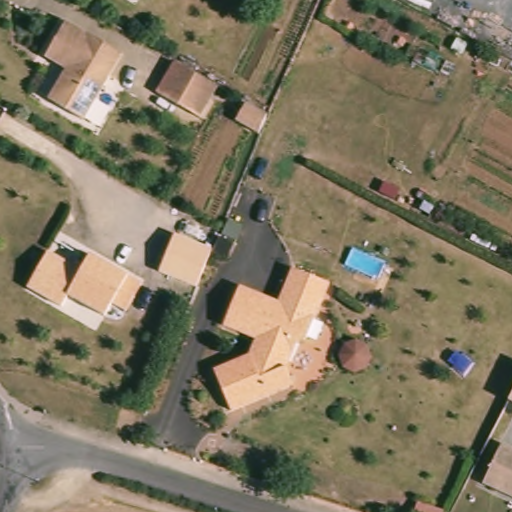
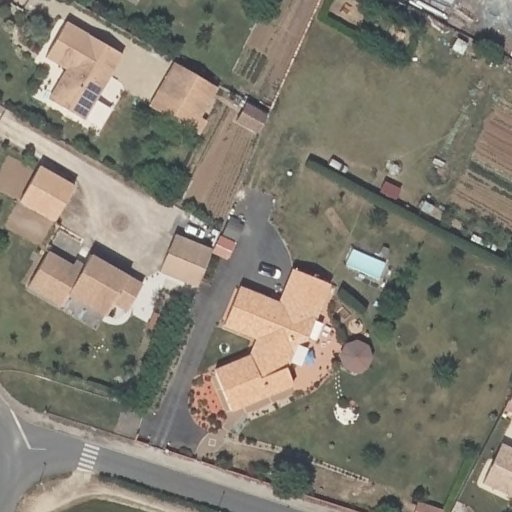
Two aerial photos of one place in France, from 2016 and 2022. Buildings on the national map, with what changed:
unchanged [(79,120),(43,100),(60,69),(40,57),(60,21),(116,54),(79,120)]
unchanged [(212,91),(195,121),(151,96),(169,66),(212,91)]
unchanged [(271,111),(262,132),(238,119),(247,101),(271,111)]
new [(32,161),(67,181),(47,215),(13,196),(32,161)]
unchanged [(155,276),(165,253),(170,239),(207,254),(202,268),(192,291),(155,276)]
unchanged [(122,316),(108,308),(101,321),(64,301),(58,312),(24,293),(43,258),(68,271),(71,266),(80,271),(86,260),(124,281),(138,289),(122,316)]
unchanged [(251,342),(218,329),(233,292),(273,308),(287,274),(322,288),(300,342),(290,346),(283,364),(292,378),(237,417),(212,382),(244,360),(251,342)]
unchanged [(358,339),(369,344),(374,358),(368,370),(354,374),(343,367),(339,355),(344,343),(358,339)]
unchanged [(512,394),(512,400),(509,399),(512,394)]
unchanged [(502,441),(512,446),(512,495),(484,481),(502,441)]
unchanged [(445,510),(444,512),(414,512),(417,499),(445,510)]

